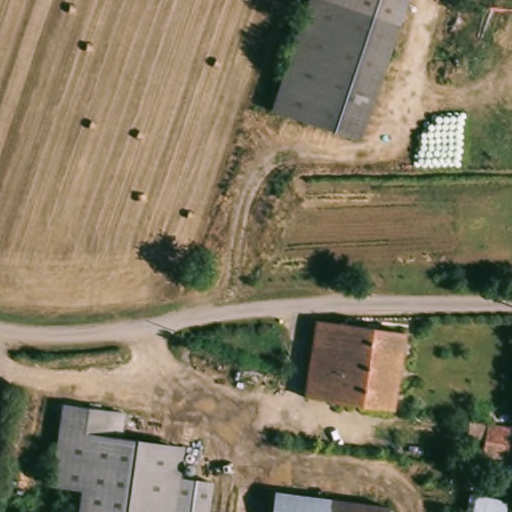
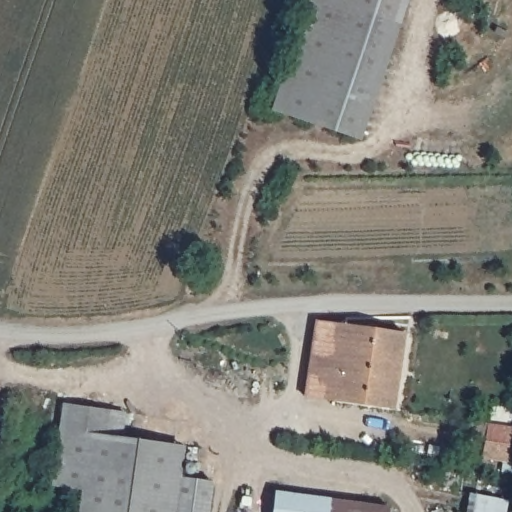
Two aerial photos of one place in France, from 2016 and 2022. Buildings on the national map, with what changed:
unchanged [(266,108),(305,0),(401,0),(353,138),(266,108)]
unchanged [(310,399),(323,325),(351,328),(340,403),(310,399)]
unchanged [(351,328),(409,336),(398,411),(340,403),(351,328)]
unchanged [(75,486),(47,482),(60,398),(109,403),(106,429),(179,442),(175,476),(170,512),(71,512),(75,486)]
unchanged [(490,423),(509,426),(508,433),(512,435),(512,460),(483,456),(490,423)]
unchanged [(213,482),(209,512),(170,512),(172,491),(175,476),(213,482)]
unchanged [(383,507),(382,512),(269,512),(272,492),(383,507)]
unchanged [(508,504),(506,512),(469,512),(472,497),(508,504)]

